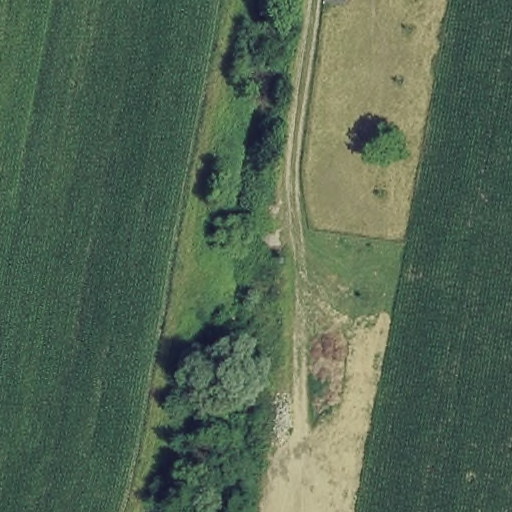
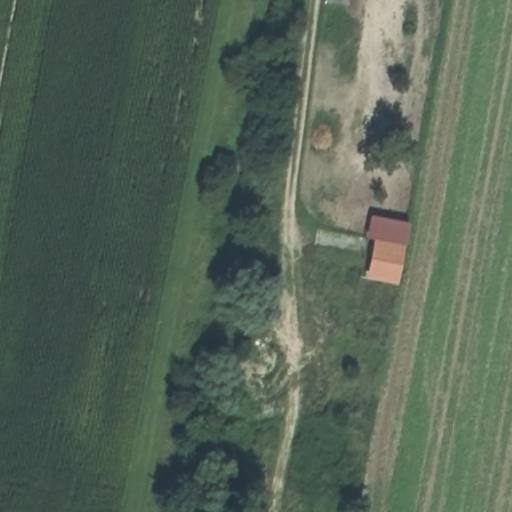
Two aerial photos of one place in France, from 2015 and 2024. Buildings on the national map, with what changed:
unchanged [(327,6),(328,0),(354,0),(353,9),(327,6)]
new [(398,284),(367,279),(374,239),(389,242),(391,229),(409,234),(404,246),(398,284)]

